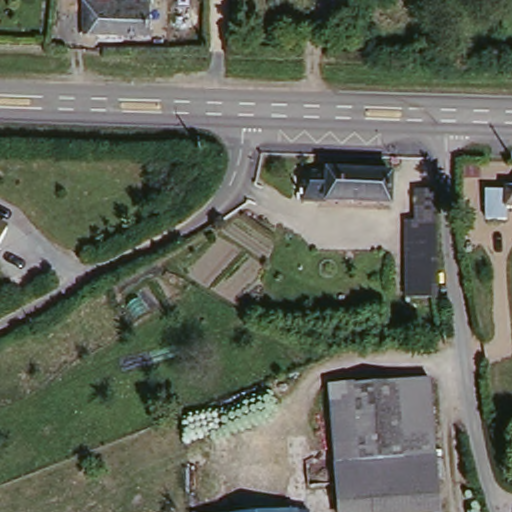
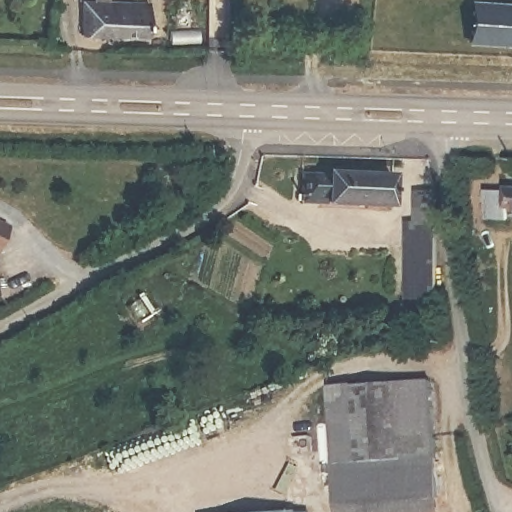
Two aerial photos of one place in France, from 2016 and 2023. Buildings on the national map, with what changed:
unchanged [(102,0),(116,0),(116,7),(147,9),(147,40),(87,37),(87,7),(102,8),(102,0)]
new [(471,42),(473,5),(512,7),(512,45),(471,42)]
unchanged [(390,169),(390,200),(322,197),(321,205),(305,203),(305,166),(390,169)]
unchanged [(512,188),(512,222),(484,220),(486,188),(512,188)]
unchanged [(440,224),(438,288),(413,288),(416,190),(440,189),(440,224)]
unchanged [(2,257),(0,256),(0,228),(12,235),(2,257)]
unchanged [(427,375),(442,444),(406,452),(394,381),(427,375)]
unchanged [(394,381),(406,452),(366,460),(354,388),(394,381)]
unchanged [(366,460),(347,465),(337,466),(323,394),(354,388),(366,460)]
unchanged [(366,460),(406,452),(442,444),(450,487),(355,505),(347,465),(366,460)]
unchanged [(453,506),(423,512),(356,512),(355,505),(450,487),(453,506)]
unchanged [(296,509),(306,509),(306,512),(258,512),(296,509)]

